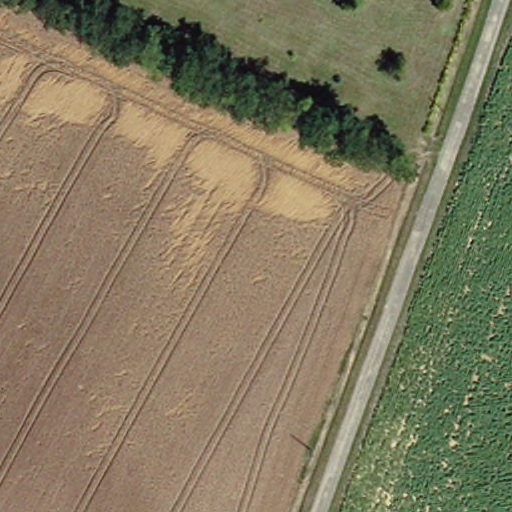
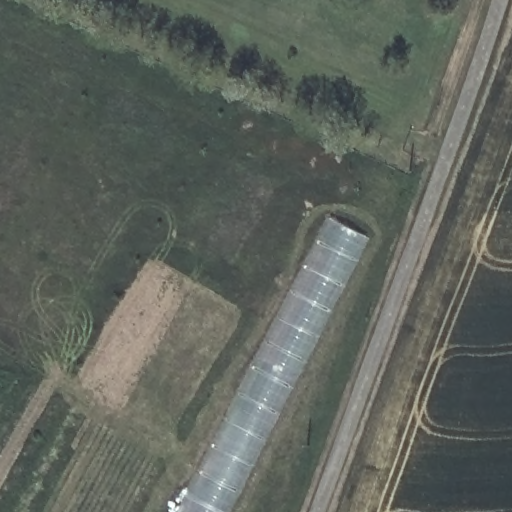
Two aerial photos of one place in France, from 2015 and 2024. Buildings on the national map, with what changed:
new [(231,512),(181,512),(329,216),(371,238),(231,512)]

